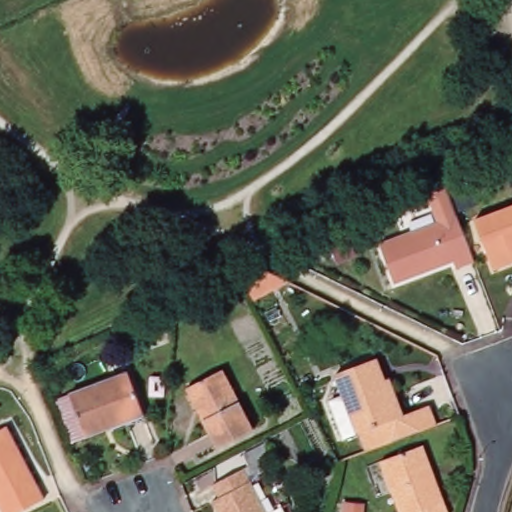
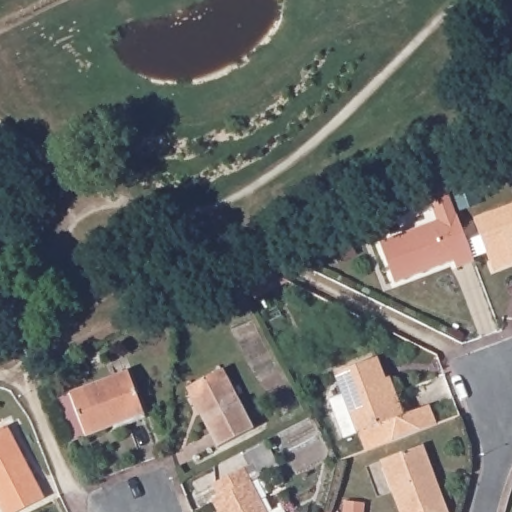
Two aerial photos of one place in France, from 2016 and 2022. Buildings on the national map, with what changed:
unchanged [(472,258),(475,266),(457,272),(455,266),(395,287),(381,247),(438,226),(426,190),(445,183),(472,258)]
unchanged [(493,269),(475,219),(512,205),(512,263),(493,269)]
unchanged [(293,285),(258,304),(246,281),(266,271),(293,285)]
unchanged [(405,405),(398,407),(358,422),(335,363),(376,349),(383,369),(391,367),(405,405)]
unchanged [(257,429),(222,447),(192,387),(227,369),(257,429)]
unchanged [(144,413),(86,437),(69,394),(128,371),(144,413)]
unchanged [(24,512),(8,512),(0,497),(0,432),(11,426),(49,499),(24,512)]
unchanged [(400,512),(392,492),(380,461),(422,444),(448,512),(400,512)]
unchanged [(220,491),(213,478),(242,463),(267,509),(280,502),(285,512),(219,512),(211,496),(220,491)]

